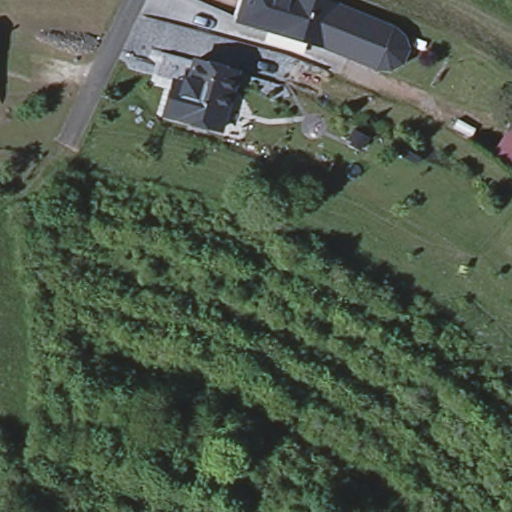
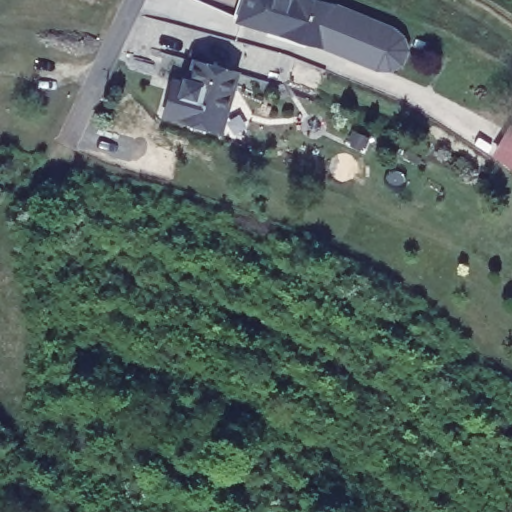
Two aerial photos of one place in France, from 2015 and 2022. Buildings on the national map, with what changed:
unchanged [(400,37),(395,50),(385,57),(372,58),(314,40),(232,15),(237,0),(323,0),(326,1),(387,19),(395,26),(400,37)]
unchanged [(175,96),(178,82),(183,83),(186,74),(188,65),(230,75),(227,83),(222,107),(175,96)]
unchanged [(159,119),(160,116),(165,94),(175,96),(222,107),(217,128),(215,133),(159,119)]
unchanged [(512,125),(512,167),(495,156),(511,124),(512,125)]

